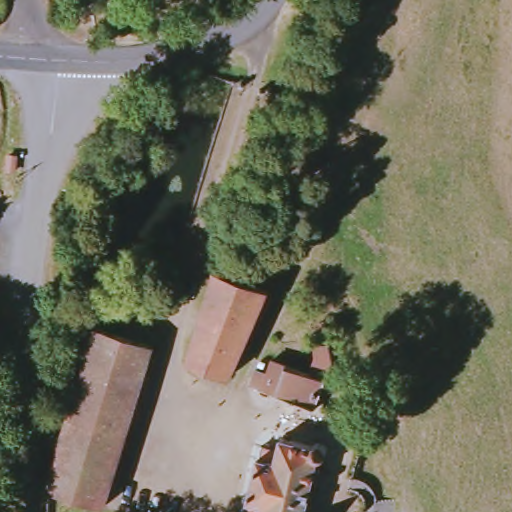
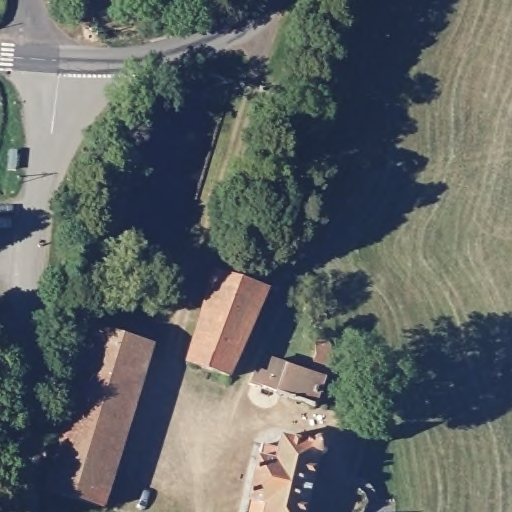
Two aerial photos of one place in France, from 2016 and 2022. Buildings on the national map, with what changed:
unchanged [(190,362),(221,273),(266,290),(247,343),(236,377),(190,362)]
unchanged [(48,493),(74,407),(95,335),(156,353),(138,413),(105,511),(48,493)]
unchanged [(333,341),(335,347),(335,353),(332,364),(328,374),(322,389),(318,395),(313,405),(253,389),(259,371),(272,375),(277,360),(317,372),(319,369),(321,365),(322,361),(323,356),(322,351),(321,347),(320,344),(320,341),(325,340),(330,341),(333,341)]
unchanged [(267,510),(251,505),(265,440),(282,445),(285,431),(318,439),(319,437),(320,436),(321,434),(322,434),(324,433),(326,434),(328,435),(330,437),(331,438),(331,440),(332,441),(332,443),(331,446),(330,447),(329,448),(327,449),(323,450),(306,512),(267,512),(267,510)]

